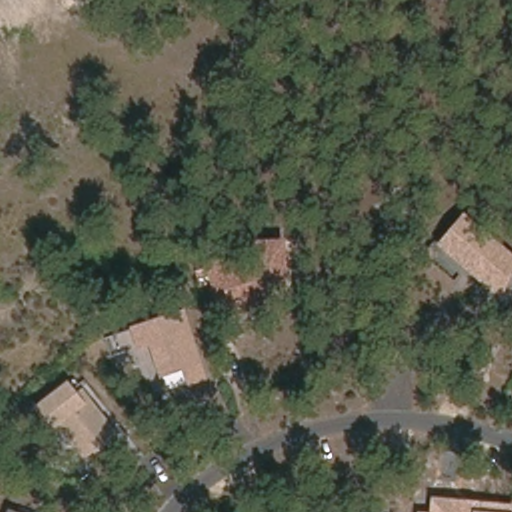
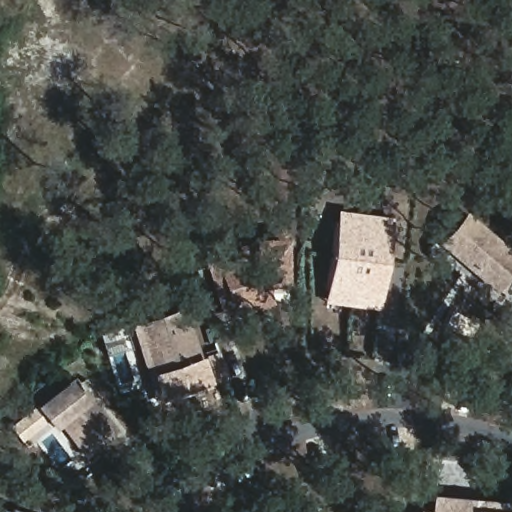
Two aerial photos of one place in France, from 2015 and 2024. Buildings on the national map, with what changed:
unchanged [(491,297),(433,243),(460,208),(512,256),(512,268),(491,297)]
new [(324,302),(337,209),(392,215),(381,309),(324,302)]
unchanged [(252,241),(284,240),(285,286),(264,288),(268,308),(223,319),(207,269),(253,257),(252,241)]
unchanged [(178,308),(199,375),(182,380),(178,364),(156,371),(146,338),(134,341),(129,324),(178,308)]
unchanged [(58,424),(51,430),(35,410),(66,386),(75,398),(81,393),(87,400),(113,434),(90,451),(83,457),(58,424)]
unchanged [(429,497),(512,503),(512,512),(429,512),(429,497)]
new [(317,506),(321,512),(309,512),(317,506)]
unchanged [(8,509),(13,512),(7,512),(8,509)]

